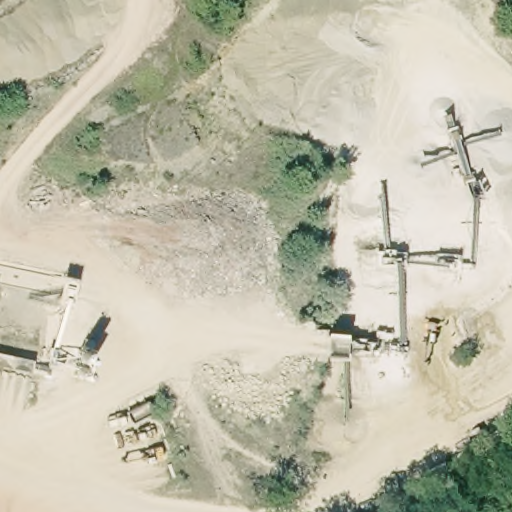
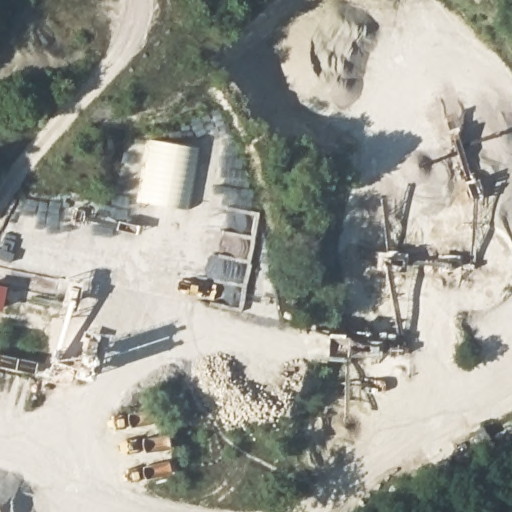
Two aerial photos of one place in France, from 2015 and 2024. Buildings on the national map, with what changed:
new [(138,200),(149,140),(199,149),(188,208),(138,200)]

